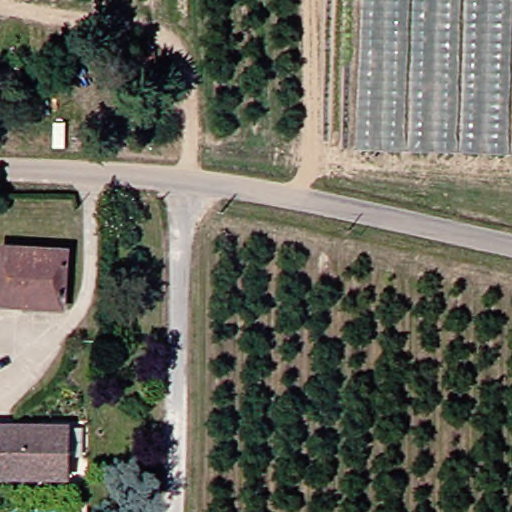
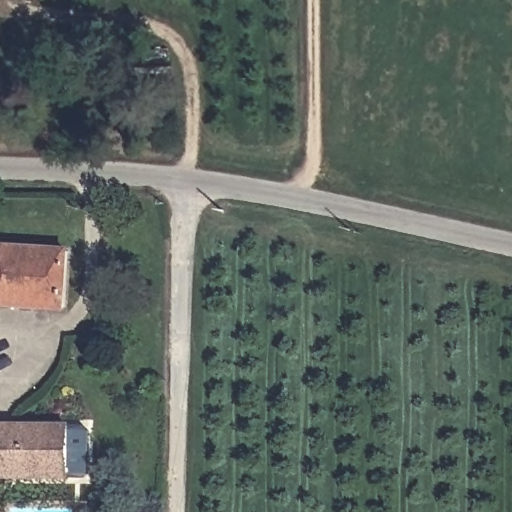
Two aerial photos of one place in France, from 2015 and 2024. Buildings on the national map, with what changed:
demolished [(357,0),(512,0),(512,157),(353,153),(357,0)]
unchanged [(55,306),(0,304),(0,248),(57,250),(55,306)]
unchanged [(62,482),(0,481),(0,426),(59,426),(62,482)]

